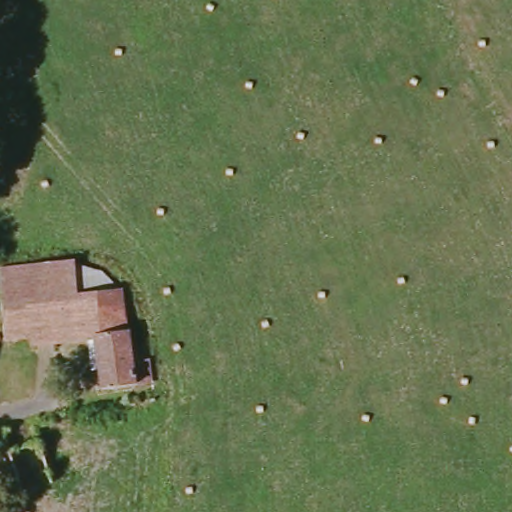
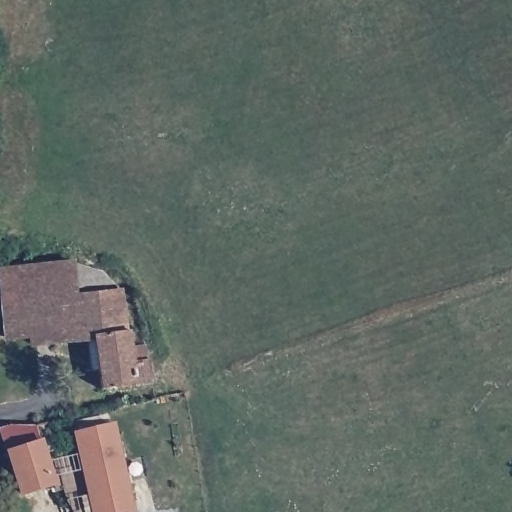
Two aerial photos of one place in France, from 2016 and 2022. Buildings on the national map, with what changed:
unchanged [(133,327),(138,358),(153,357),(157,381),(108,388),(100,336),(61,339),(60,331),(13,336),(8,266),(78,262),(80,295),(123,291),(129,327),(133,327)]
new [(116,423),(135,512),(91,512),(73,432),(116,423)]
new [(5,450),(0,437),(0,429),(34,424),(42,440),(55,484),(21,496),(5,450)]

